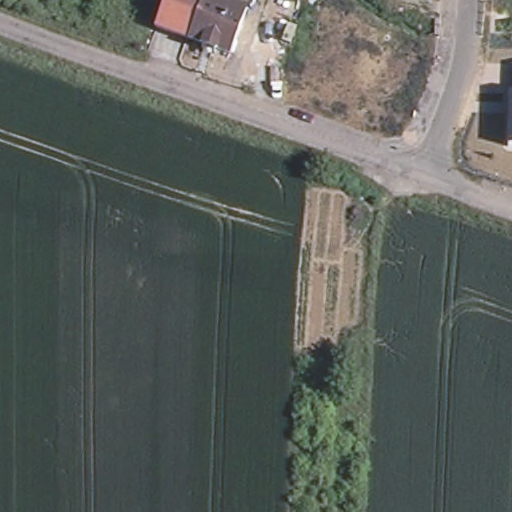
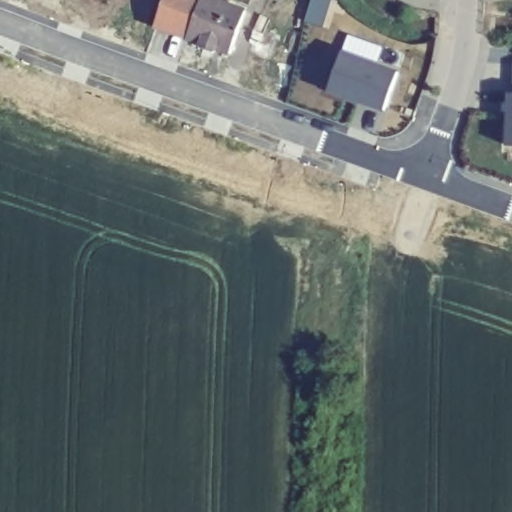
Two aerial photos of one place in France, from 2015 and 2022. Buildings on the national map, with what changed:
unchanged [(247,11),(231,54),(216,49),(215,53),(203,49),(204,44),(188,38),(156,25),(165,0),(218,0),(247,11)]
new [(329,92),(344,51),(401,73),(384,114),(329,92)]
unchanged [(512,92),(512,146),(507,146),(508,92),(512,92)]

